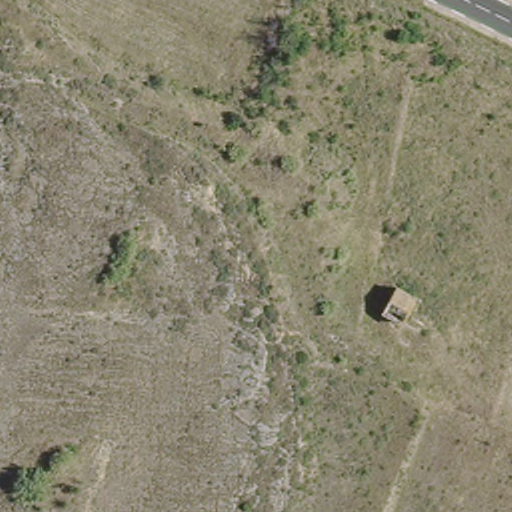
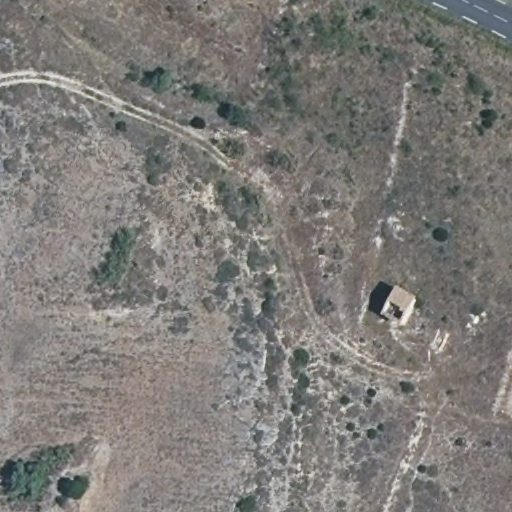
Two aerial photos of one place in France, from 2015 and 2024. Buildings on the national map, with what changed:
unchanged [(399,325),(376,313),(389,288),(413,300),(399,325)]

